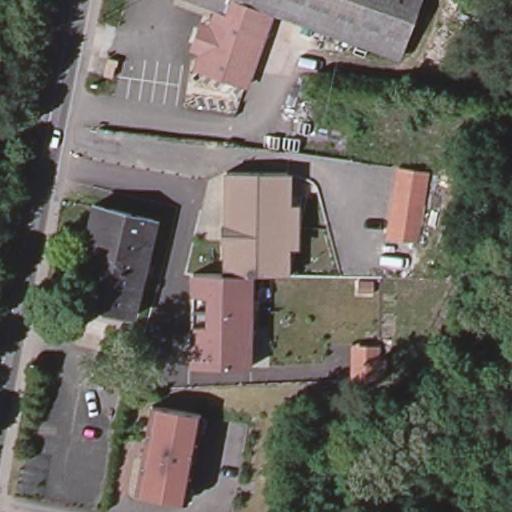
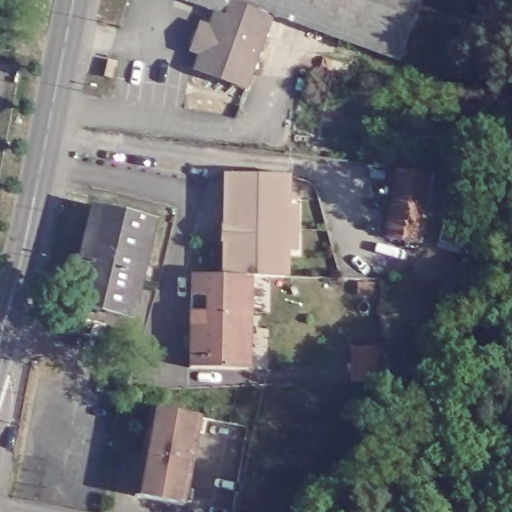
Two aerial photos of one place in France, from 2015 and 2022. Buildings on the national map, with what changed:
unchanged [(218,10),(192,0),(230,0),(225,12),(218,10)]
unchanged [(218,10),(225,12),(230,0),(242,0),(274,11),(251,71),(246,86),(196,67),(196,65),(218,10)]
unchanged [(274,11),(242,0),(420,0),(399,56),(274,11)]
unchanged [(117,61),(116,67),(114,66),(112,77),(104,76),(108,59),(117,61)]
unchanged [(396,165),(426,169),(416,241),(386,237),(396,165)]
unchanged [(221,226),(224,226),(226,172),(288,174),(286,205),(297,205),(299,229),(296,250),(286,250),(285,276),(250,275),(223,275),(224,240),(221,240),(221,226)]
unchanged [(153,220),(131,319),(69,302),(93,206),(153,220)]
unchanged [(189,367),(191,274),(192,274),(223,275),(250,275),(248,368),(189,367)]
unchanged [(199,413),(183,500),(134,492),(151,404),(199,413)]

